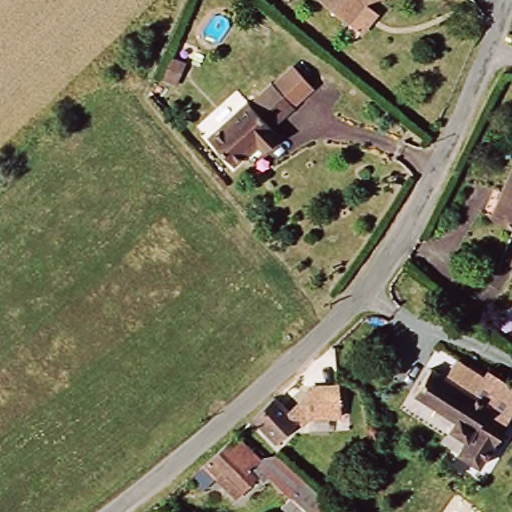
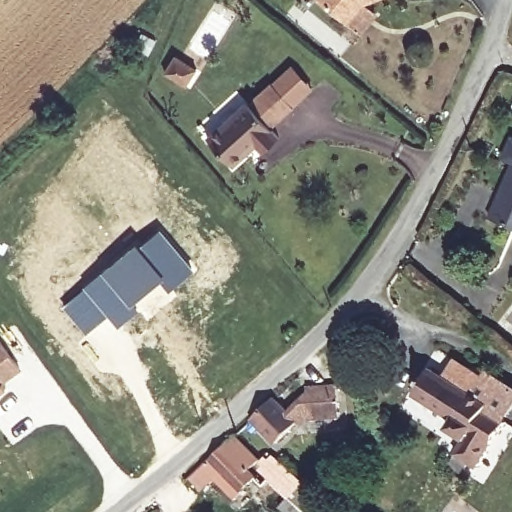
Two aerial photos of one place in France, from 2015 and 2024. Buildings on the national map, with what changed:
unchanged [(328,0),(370,0),(350,19),(328,0)]
unchanged [(280,138),(264,152),(260,146),(235,166),(211,137),(247,102),(250,106),(275,82),(293,65),(314,84),(295,103),(269,126),(280,138)]
unchanged [(512,224),(500,219),(512,191),(512,224)]
new [(160,226),(193,270),(170,289),(162,279),(138,243),(160,226)]
new [(135,240),(138,243),(162,279),(133,303),(137,309),(116,326),(107,315),(82,285),(135,240)]
new [(82,285),(107,315),(85,332),(62,304),(82,285)]
new [(18,369),(0,383),(0,344),(18,369)]
unchanged [(512,416),(507,425),(491,418),(490,427),(510,444),(475,483),(455,466),(466,455),(447,439),(453,433),(421,405),(453,359),(483,371),(512,388),(512,416)]
new [(5,389),(0,392),(0,383),(5,389)]
unchanged [(279,442),(253,416),(277,396),(295,412),(315,390),(330,391),(343,389),(345,416),(331,416),(307,415),(279,442)]
unchanged [(340,495),(324,512),(304,512),(293,502),(300,495),(266,465),(260,469),(268,476),(255,488),(222,457),(245,435),(268,455),(292,452),(323,481),(331,488),(340,495)]
unchanged [(222,457),(255,488),(241,502),(220,481),(208,490),(197,477),(222,457)]

